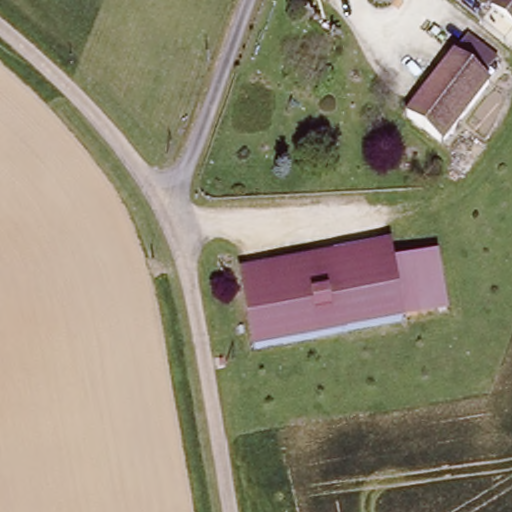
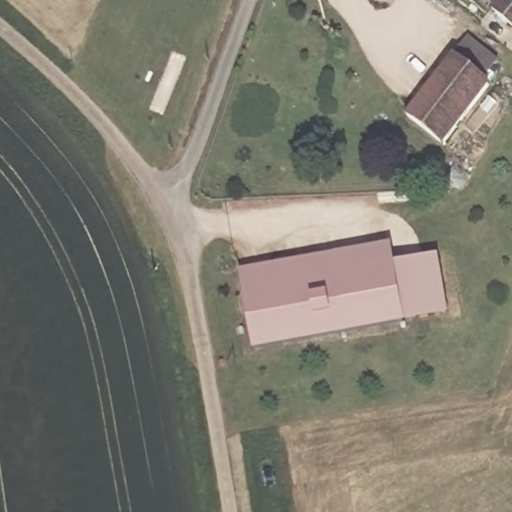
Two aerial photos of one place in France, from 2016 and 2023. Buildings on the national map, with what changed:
unchanged [(490,6),(496,0),(512,0),(512,26),(490,6)]
unchanged [(498,59),(487,75),(492,81),(445,140),(408,108),(468,36),(498,59)]
unchanged [(393,238),(397,261),(440,251),(452,314),(409,324),(405,316),(256,347),(240,266),(393,238)]

